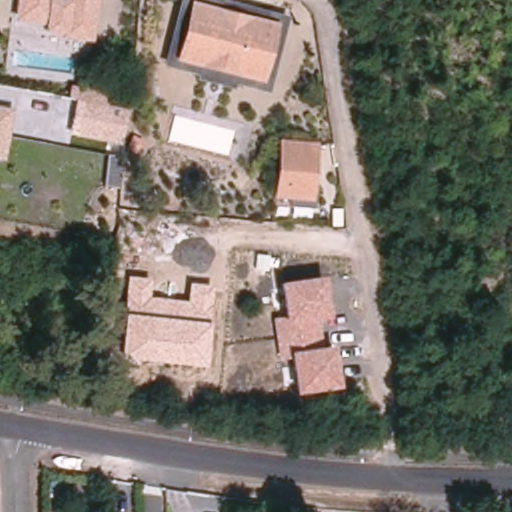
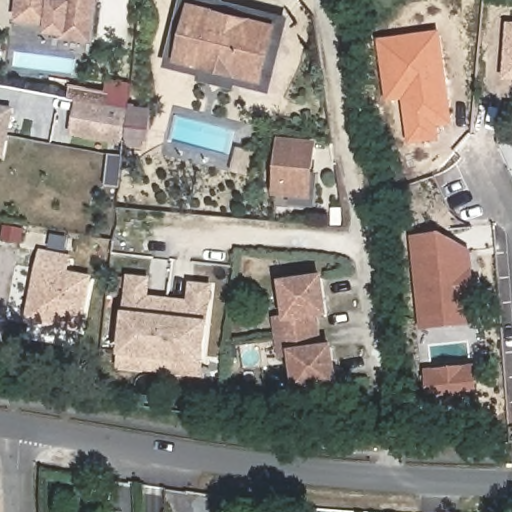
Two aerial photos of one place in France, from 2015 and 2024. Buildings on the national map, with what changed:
unchanged [(59,37),(60,31),(43,29),(44,22),(13,19),(15,0),(98,0),(94,42),(59,37)]
unchanged [(270,92),(165,64),(183,0),(227,0),(290,17),(270,92)]
new [(512,28),(512,80),(504,80),(507,28),(512,28)]
new [(448,125),(433,127),(435,141),(409,144),(402,99),(386,101),(383,75),(379,44),(394,42),(436,36),(442,84),(444,97),(448,125)]
unchanged [(129,107),(123,142),(76,134),(81,101),(69,98),(71,84),(109,89),(107,104),(129,107)]
unchanged [(5,157),(0,156),(0,107),(15,110),(5,157)]
unchanged [(314,200),(271,197),(276,137),(318,141),(314,200)]
unchanged [(121,187),(103,185),(107,154),(124,156),(121,187)]
new [(419,317),(411,240),(438,237),(440,255),(464,252),(470,322),(442,326),(420,327),(419,317)]
new [(43,253),(68,257),(65,273),(89,277),(80,326),(31,317),(43,253)]
unchanged [(278,281),(323,273),(329,316),(315,318),(319,346),(333,343),(339,387),(294,392),(289,358),(277,360),(272,317),(283,316),(278,281)]
unchanged [(208,322),(203,365),(118,357),(122,311),(126,276),(149,278),(147,296),(187,299),(189,282),(212,285),(208,322)]
new [(473,391),(427,395),(425,376),(471,372),(473,391)]

